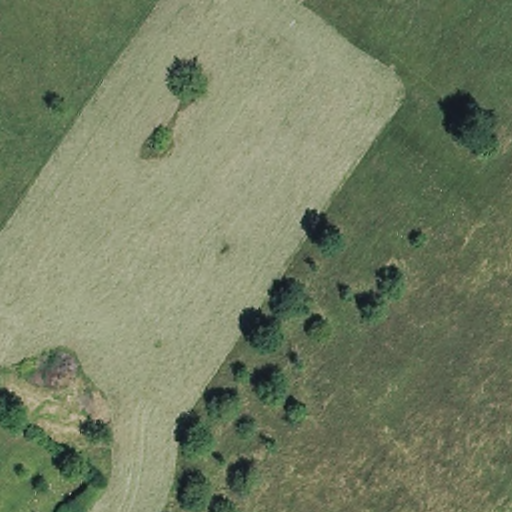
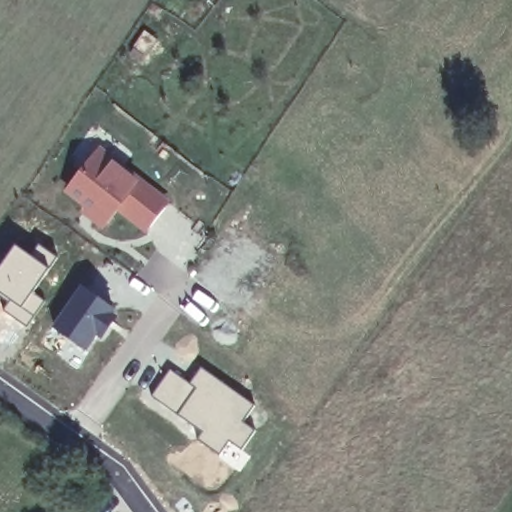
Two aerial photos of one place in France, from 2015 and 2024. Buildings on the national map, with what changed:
new [(166,202),(143,234),(114,211),(103,231),(58,195),(93,144),(166,202)]
new [(261,268),(253,286),(207,260),(214,241),(261,268)]
new [(15,244),(30,254),(38,242),(58,257),(33,291),(44,300),(25,327),(3,310),(9,301),(0,293),(0,265),(15,244)]
new [(80,284),(119,312),(100,340),(98,337),(87,352),(50,325),(80,284)]
new [(169,368),(188,382),(200,366),(255,405),(243,421),(256,430),(241,450),(230,441),(219,455),(196,437),(202,431),(151,395),(169,368)]

